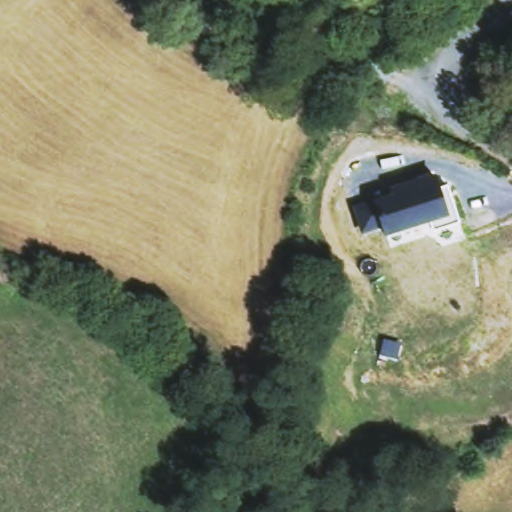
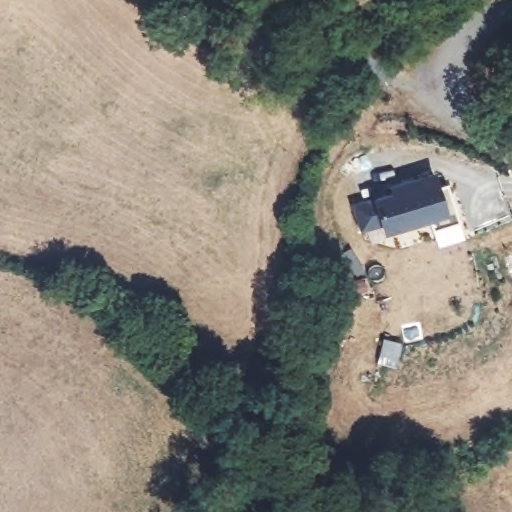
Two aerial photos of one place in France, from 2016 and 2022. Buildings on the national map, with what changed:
unchanged [(354,202),(393,190),(392,183),(433,170),(437,182),(447,180),(458,217),(432,225),(428,214),(385,227),(382,219),(362,226),(354,202)]

